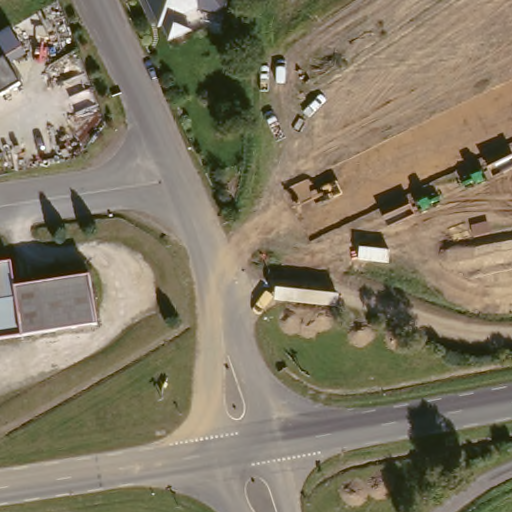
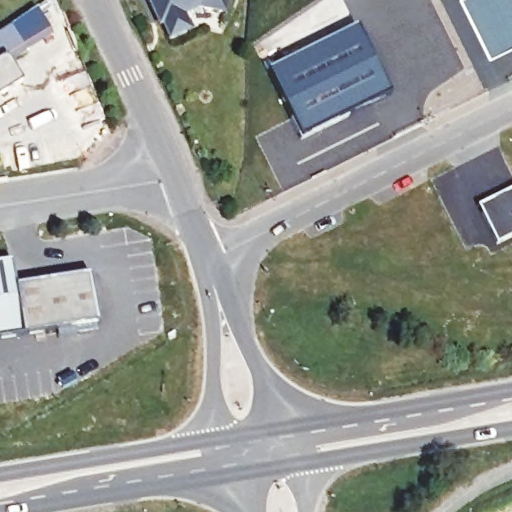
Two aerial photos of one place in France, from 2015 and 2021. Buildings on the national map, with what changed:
unchanged [(196,6),(181,13),(188,28),(168,38),(161,23),(158,16),(152,12),(146,0),(225,0),(223,10),(196,6)]
new [(512,0),(512,46),(495,54),(469,0),(512,0)]
unchanged [(15,47),(0,57),(0,23),(15,47)]
new [(388,94),(300,140),(267,71),(354,28),(388,94)]
unchanged [(12,79),(0,87),(0,60),(12,79)]
new [(476,206),(512,189),(512,238),(497,246),(476,206)]
unchanged [(9,260),(13,285),(88,273),(95,323),(20,335),(20,334),(0,337),(0,261),(9,260)]

